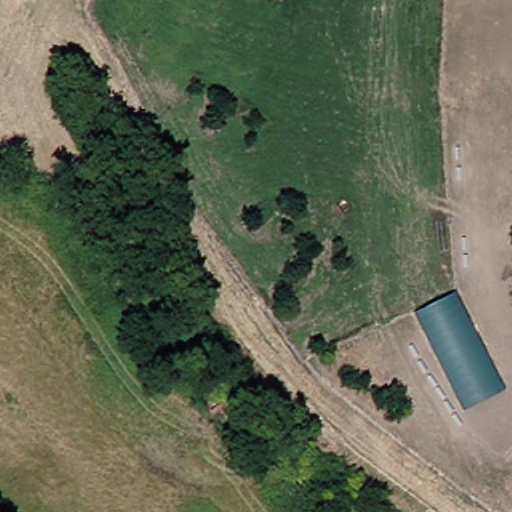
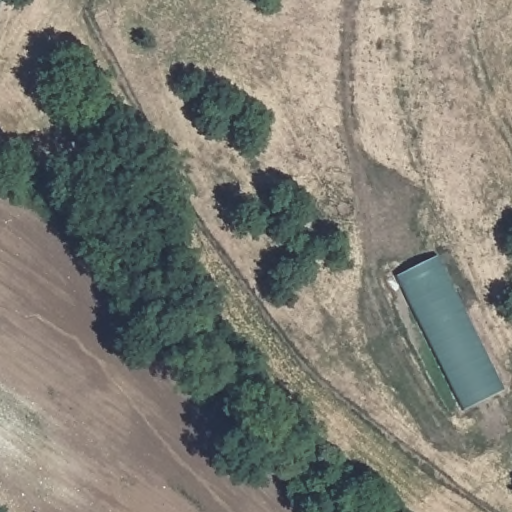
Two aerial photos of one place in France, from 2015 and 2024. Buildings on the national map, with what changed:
new [(397,277),(438,257),(456,294),(416,316),(397,277)]
unchanged [(504,390),(464,411),(416,316),(456,294),(504,390)]

